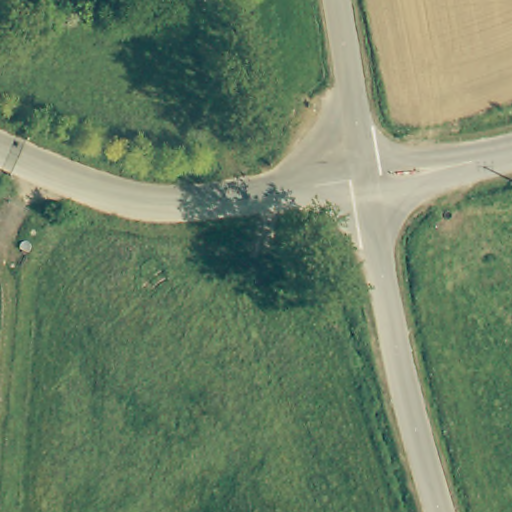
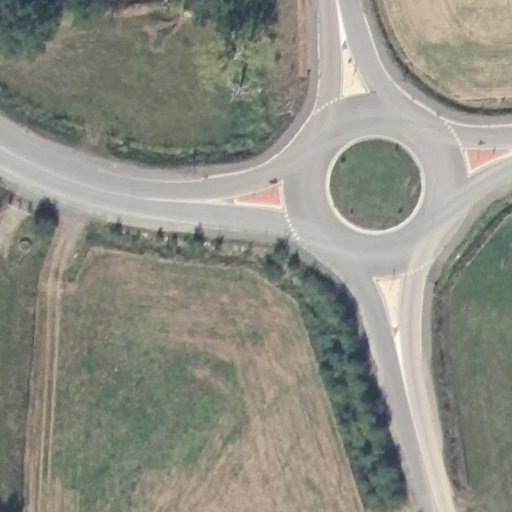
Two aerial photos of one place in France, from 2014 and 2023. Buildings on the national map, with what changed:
unchanged [(69,7),(21,7),(21,0),(68,0),(69,7)]

